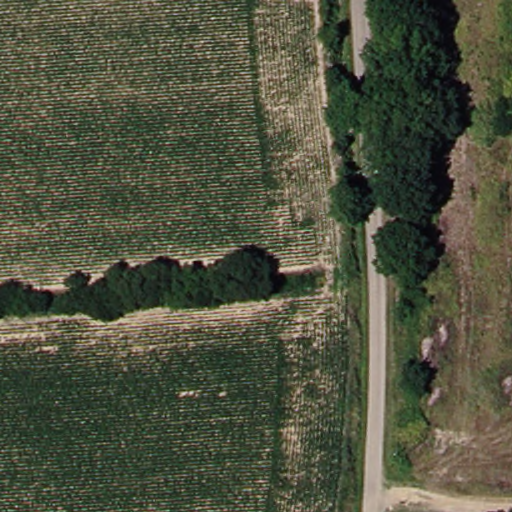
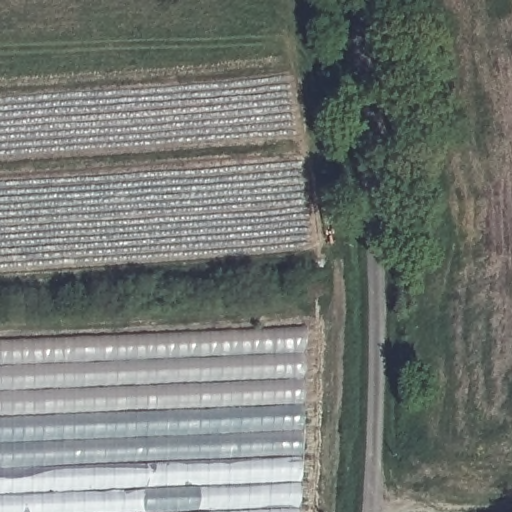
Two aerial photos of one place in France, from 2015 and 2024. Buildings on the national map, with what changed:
new [(301,512),(0,512),(0,340),(305,328),(301,512)]

